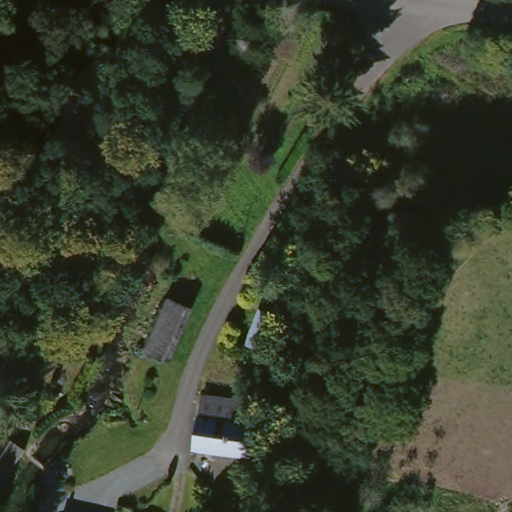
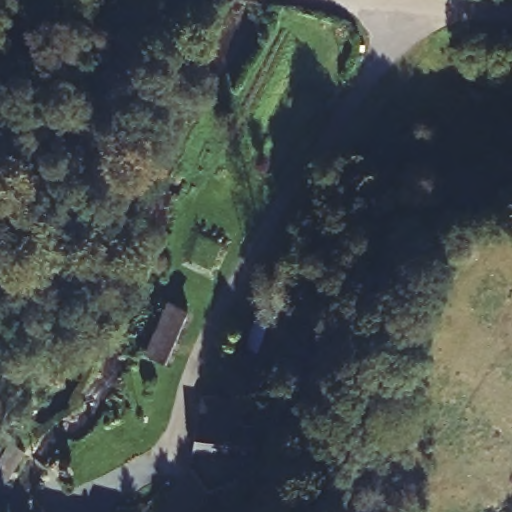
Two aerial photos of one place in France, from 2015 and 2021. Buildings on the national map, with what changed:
unchanged [(186,310),(163,364),(137,355),(162,301),(186,310)]
unchanged [(274,319),(261,359),(234,350),(251,310),(274,319)]
unchanged [(226,405),(235,406),(232,430),(250,432),(257,433),(250,468),(187,460),(195,402),(226,405)]

